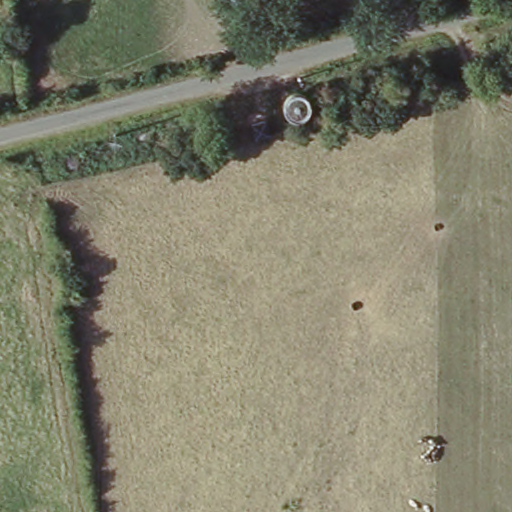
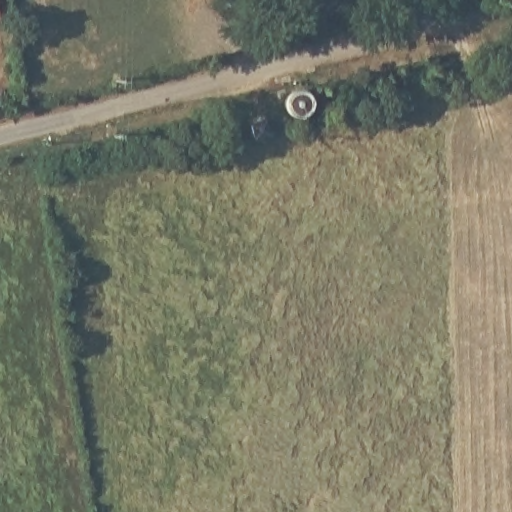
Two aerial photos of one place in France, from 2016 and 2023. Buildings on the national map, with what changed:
unchanged [(255,131),(259,146),(245,150),(241,135),(255,131)]

